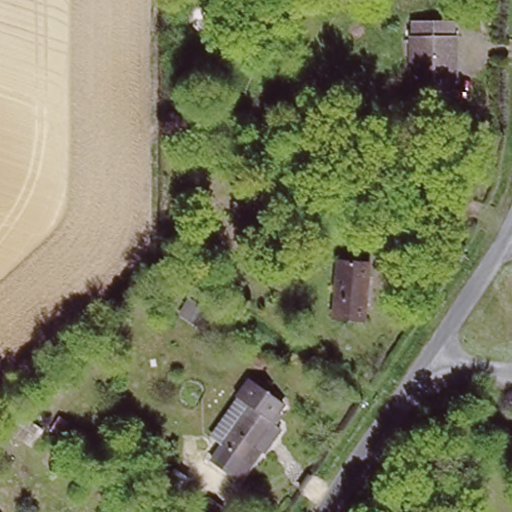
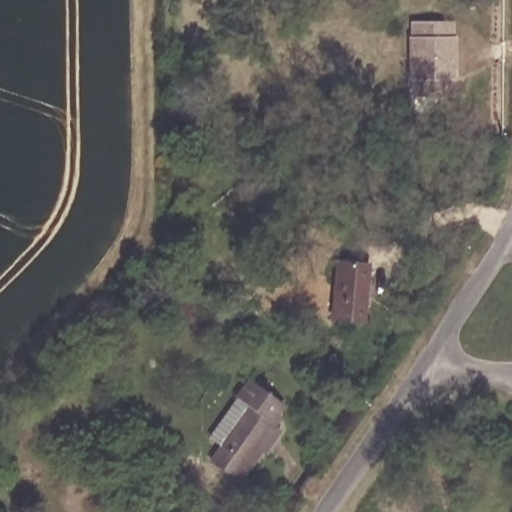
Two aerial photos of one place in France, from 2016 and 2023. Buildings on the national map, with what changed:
unchanged [(408,82),(407,23),(451,23),(451,82),(451,97),(440,97),(416,98),(408,98),(408,82)]
unchanged [(242,115),(242,137),(204,137),(205,115),(242,115)]
unchanged [(334,259),(365,262),(359,319),(329,317),(334,259)]
unchanged [(258,452),(255,449),(243,463),(218,445),(245,406),(232,397),(245,378),(278,402),(272,411),(278,415),(271,425),(277,428),(258,452)]
unchanged [(83,422),(86,425),(78,438),(75,436),(57,425),(65,411),(83,422)]
unchanged [(214,495),(228,504),(223,512),(201,512),(214,495)]

